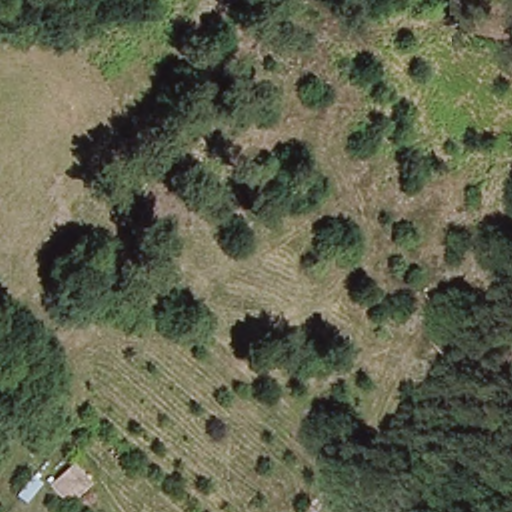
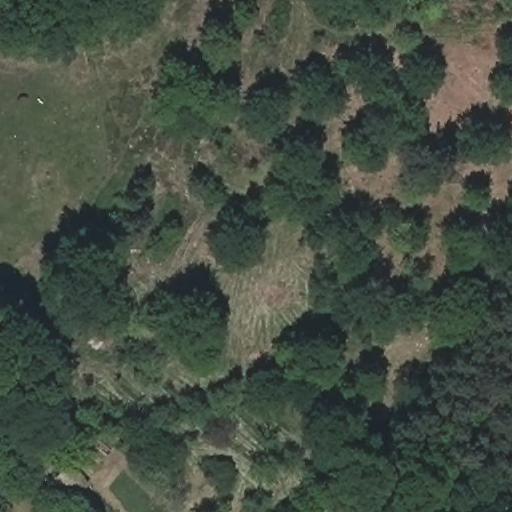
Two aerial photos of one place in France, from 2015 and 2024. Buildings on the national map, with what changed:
unchanged [(75,502),(71,497),(63,505),(49,487),(70,463),(91,486),(75,502)]

